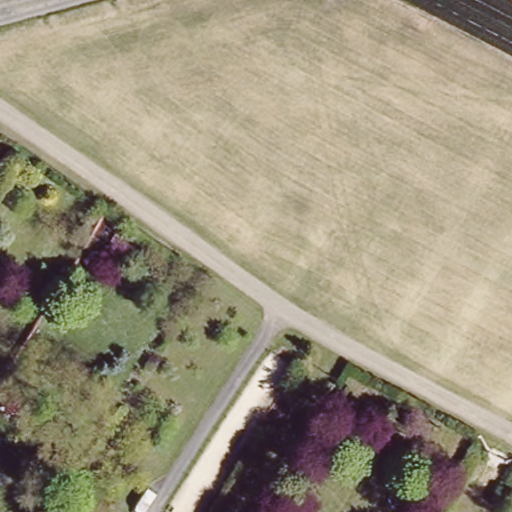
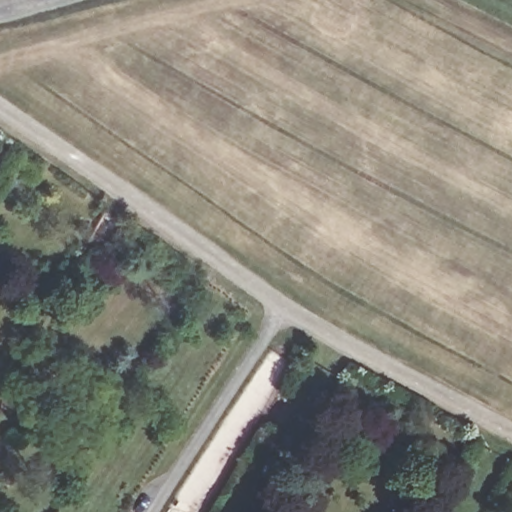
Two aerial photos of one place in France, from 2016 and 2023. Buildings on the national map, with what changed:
[]

